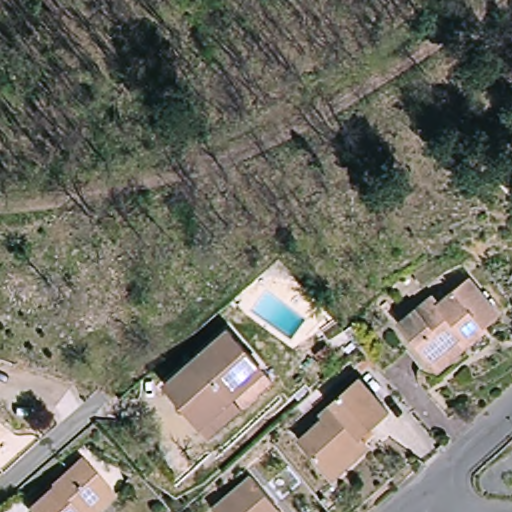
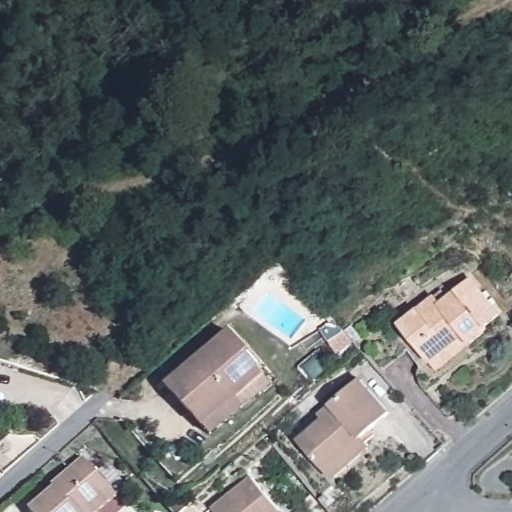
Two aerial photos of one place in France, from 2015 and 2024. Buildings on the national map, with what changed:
unchanged [(400,326),(431,296),(437,289),(447,299),(469,279),(500,315),(489,326),(492,328),(473,346),(444,373),(433,363),(400,326)]
unchanged [(204,418),(168,379),(227,324),(263,363),(235,389),(244,399),(212,428),(204,418)]
unchanged [(338,478),(329,468),(302,440),(327,417),(324,414),(360,380),(390,412),(365,435),(374,444),(338,478)]
unchanged [(83,460),(110,488),(115,495),(97,512),(33,512),(31,510),(83,460)]
unchanged [(250,477),(283,512),(216,512),(214,509),(250,477)]

